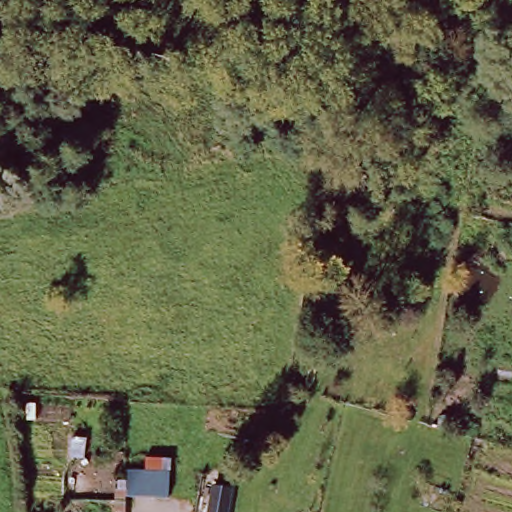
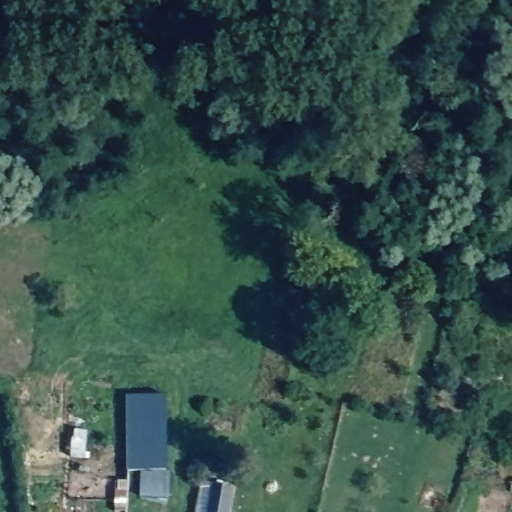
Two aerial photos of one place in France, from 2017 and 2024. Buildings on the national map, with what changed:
new [(124,396),(165,396),(166,461),(143,457),(143,471),(132,472),(130,481),(127,481),(124,396)]
unchanged [(126,512),(116,512),(118,481),(130,481),(132,472),(143,471),(143,457),(171,461),(168,499),(129,493),(127,502),(126,512)]
unchanged [(210,512),(214,487),(231,490),(227,512),(210,512)]

